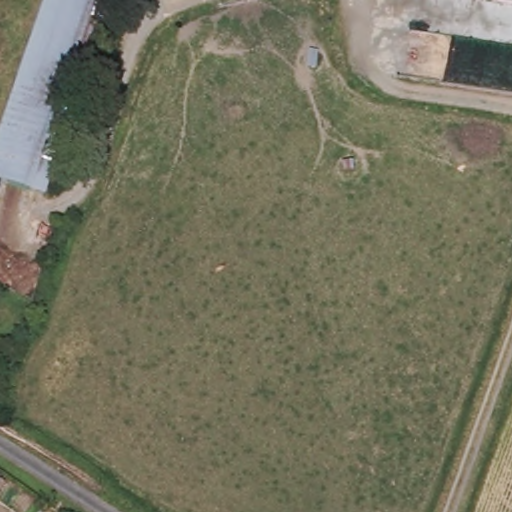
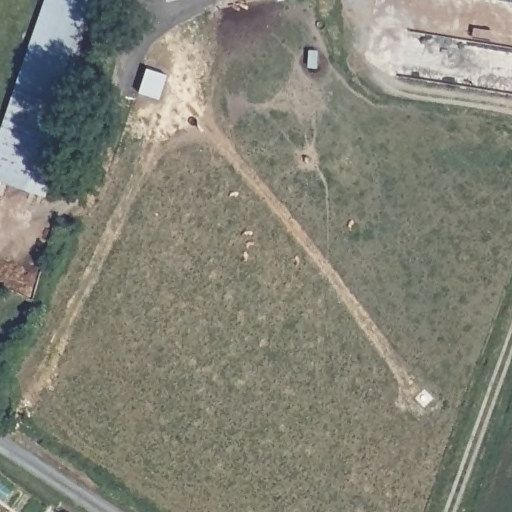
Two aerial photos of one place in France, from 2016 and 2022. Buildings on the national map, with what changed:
unchanged [(47,199),(0,183),(0,144),(48,0),(113,0),(47,199)]

